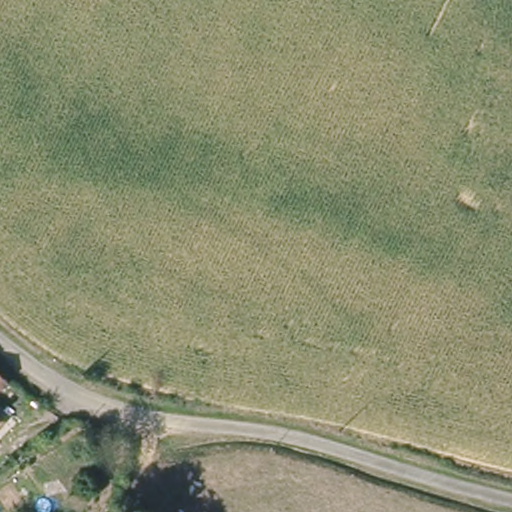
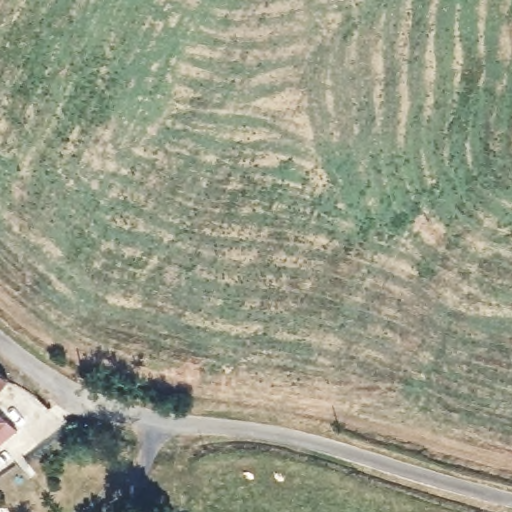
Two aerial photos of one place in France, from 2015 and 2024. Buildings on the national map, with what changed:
unchanged [(7,382),(0,390),(0,376),(7,382)]
unchanged [(1,425),(0,426),(0,425),(1,425)]

